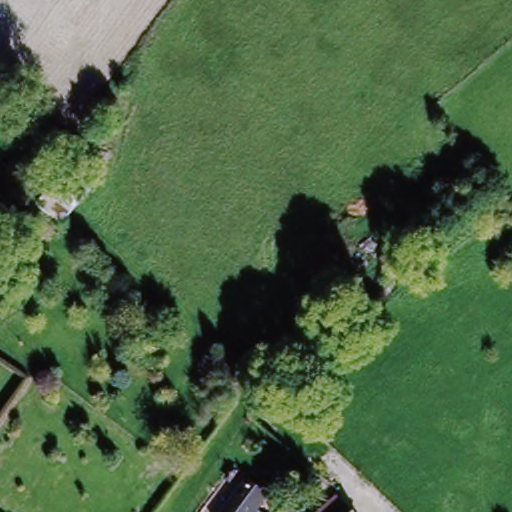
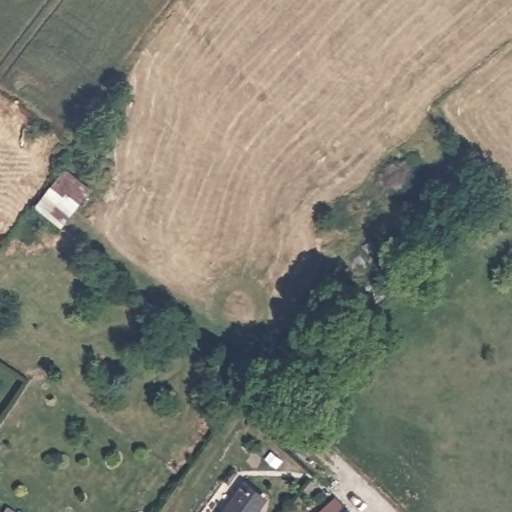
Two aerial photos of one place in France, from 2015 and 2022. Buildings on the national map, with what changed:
unchanged [(69,173),(93,194),(64,232),(34,212),(69,173)]
unchanged [(246,492),(266,507),(263,512),(231,512),(246,492)]
unchanged [(336,507),(341,512),(330,512),(336,507)]

